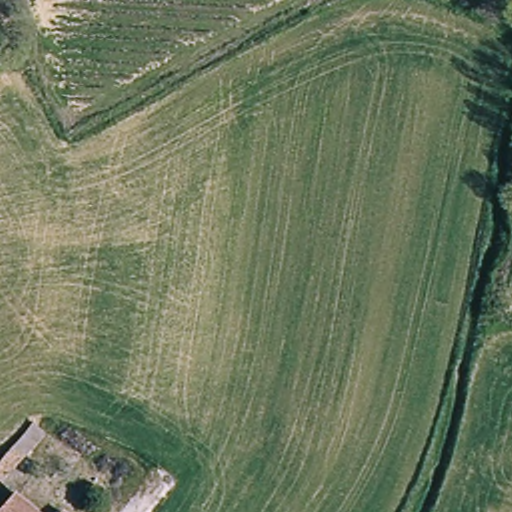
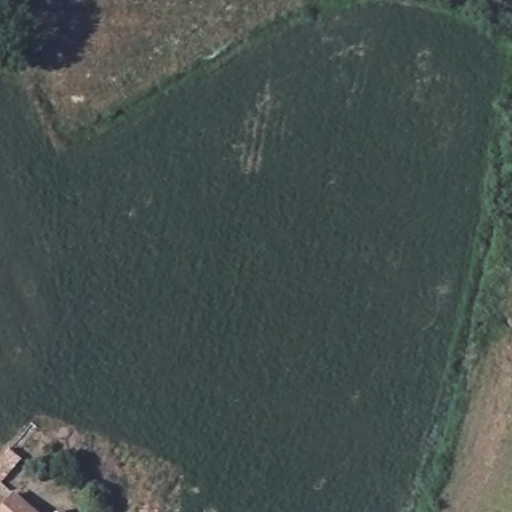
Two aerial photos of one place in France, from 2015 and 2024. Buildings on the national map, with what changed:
unchanged [(31,424),(42,433),(0,482),(0,462),(3,459),(31,424)]
unchanged [(0,501),(6,493),(28,512),(0,512),(0,501)]

